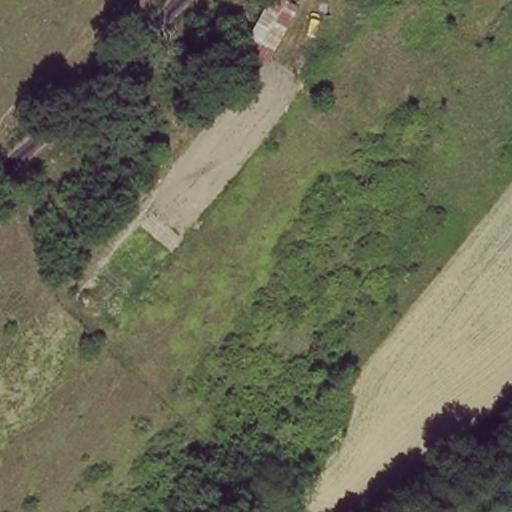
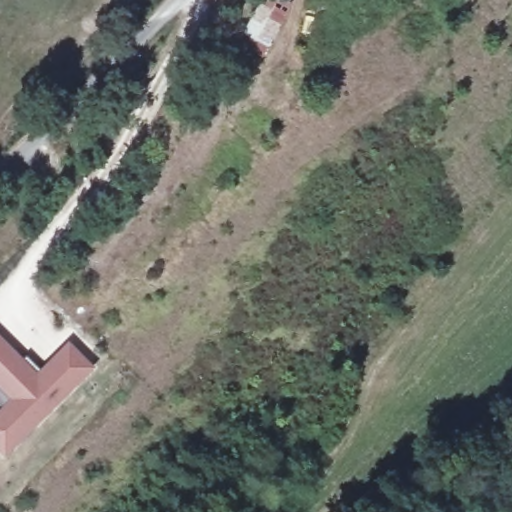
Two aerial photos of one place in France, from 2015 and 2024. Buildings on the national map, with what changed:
unchanged [(263,54),(238,40),(265,0),(271,0),(290,11),(263,54)]
new [(0,453),(0,411),(3,408),(0,404),(0,336),(24,361),(28,359),(40,372),(69,343),(95,370),(6,459),(0,453)]

